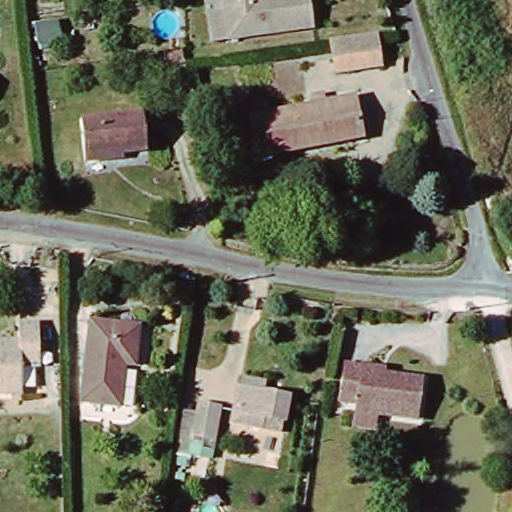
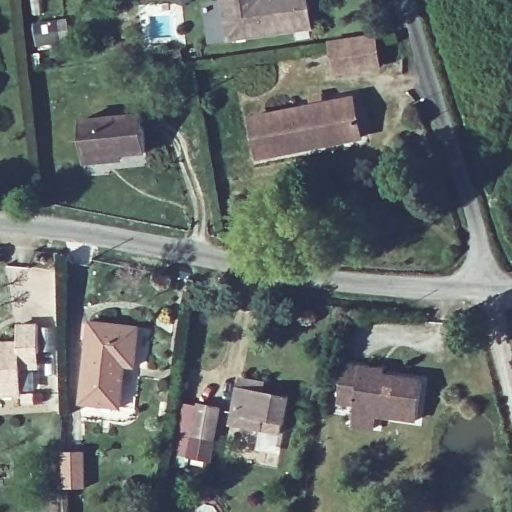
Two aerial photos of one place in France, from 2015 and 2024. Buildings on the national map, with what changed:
unchanged [(223,0),(310,0),(313,30),(228,40),(223,0)]
unchanged [(332,49),(377,43),(379,59),(334,65),(332,49)]
unchanged [(348,97),(355,137),(260,155),(253,116),(348,97)]
unchanged [(104,163),(84,166),(77,123),(140,115),(144,149),(120,152),(121,160),(104,163)]
unchanged [(118,408),(79,403),(88,321),(137,327),(132,366),(122,364),(118,408)]
unchanged [(0,399),(0,347),(5,347),(27,347),(27,328),(46,328),(46,356),(47,371),(28,371),(29,398),(0,399)]
unchanged [(336,398),(342,362),(376,368),(375,372),(420,378),(414,417),(352,408),(353,401),(336,398)]
unchanged [(226,431),(228,419),(235,378),(263,383),(261,394),(288,398),(284,427),(255,423),(254,435),(226,431)]
unchanged [(192,457),(197,425),(212,427),(208,459),(192,457)]
new [(83,452),(84,488),(62,489),(62,452),(83,452)]

